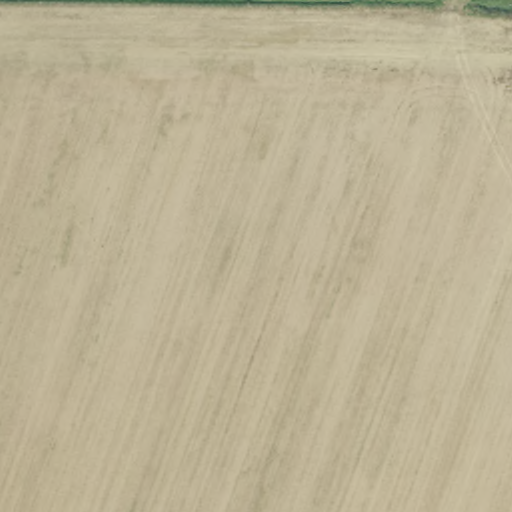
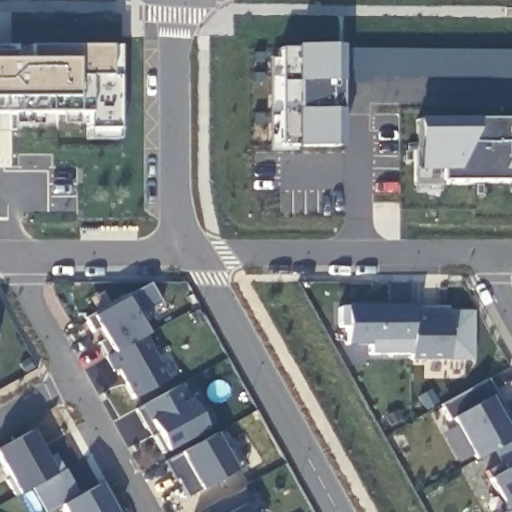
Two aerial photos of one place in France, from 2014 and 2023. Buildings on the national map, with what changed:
new [(122,130),(84,131),(86,114),(0,114),(0,48),(106,47),(121,47),(122,130)]
new [(295,47),(340,48),(341,149),(295,148),(281,147),(280,48),(295,47)]
new [(438,185),(413,185),(414,170),(414,119),(512,119),(512,185),(509,184),(438,185)]
new [(131,399),(114,370),(112,372),(106,358),(111,354),(90,318),(127,297),(130,291),(142,314),(138,319),(146,336),(167,380),(131,399)]
new [(409,356),(368,355),(368,347),(343,346),(343,330),(336,330),(337,306),(409,308),(409,356)]
new [(439,307),(452,308),(452,312),(472,312),(472,360),(409,361),(409,308),(439,307)]
new [(512,438),(512,439),(473,459),(450,418),(441,404),(486,380),(510,421),(505,426),(512,438)]
new [(191,399),(208,431),(164,453),(153,434),(149,437),(136,408),(182,385),(191,399)]
new [(30,431),(45,458),(54,453),(63,470),(33,486),(15,496),(6,480),(9,478),(0,463),(0,447),(30,431)]
new [(181,453),(216,435),(236,471),(200,491),(187,497),(177,477),(174,479),(166,463),(181,453)]
new [(63,470),(77,496),(99,484),(115,512),(63,512),(60,507),(51,512),(46,512),(33,486),(63,470)]
new [(246,507),(248,512),(195,512),(241,487),(250,502),(246,507)]
new [(512,509),(512,512),(507,512),(512,509)]

